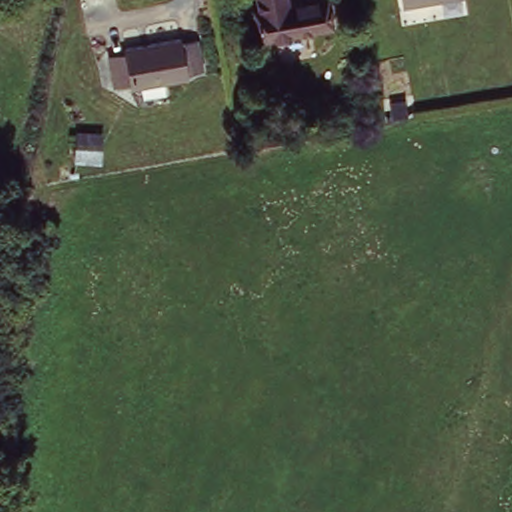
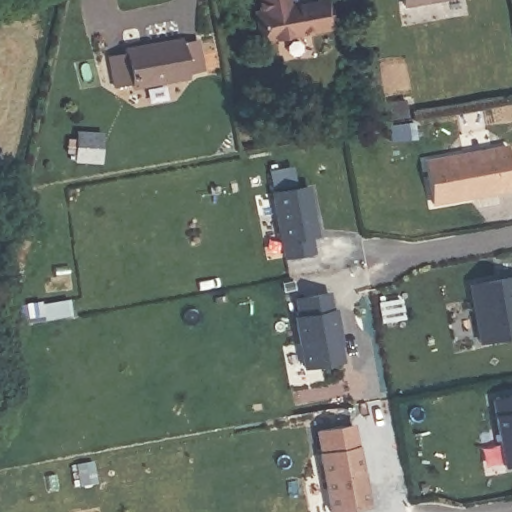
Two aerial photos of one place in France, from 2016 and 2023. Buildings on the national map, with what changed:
unchanged [(292,10),(332,4),(336,30),(263,41),(259,18),(264,16),(261,0),(289,0),(292,10)]
unchanged [(408,7),(406,0),(441,0),(408,7)]
unchanged [(130,51),(129,47),(184,38),(186,43),(200,41),(206,72),(136,84),(135,79),(114,85),(113,76),(111,55),(130,51)]
demolished [(64,153),(39,149),(45,97),(71,103),(64,153)]
unchanged [(96,137),(98,161),(74,162),(74,137),(96,137)]
new [(508,143),(512,169),(512,191),(432,206),(424,159),(508,143)]
new [(321,237),(314,238),(317,253),(283,259),(270,193),(275,192),(271,171),(293,165),(297,187),(310,185),(321,237)]
new [(481,344),(471,283),(512,275),(512,339),(481,344)]
new [(329,290),(332,308),(338,306),(348,363),(304,370),(294,299),(329,290)]
new [(492,398),(512,395),(512,467),(503,468),(492,398)]
new [(370,508),(346,512),(329,512),(316,432),(354,422),(370,508)]

